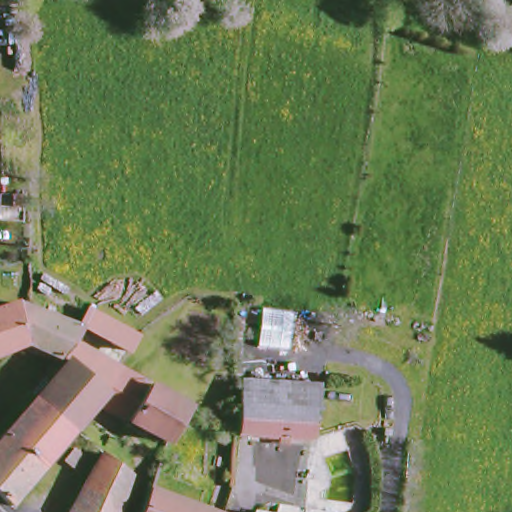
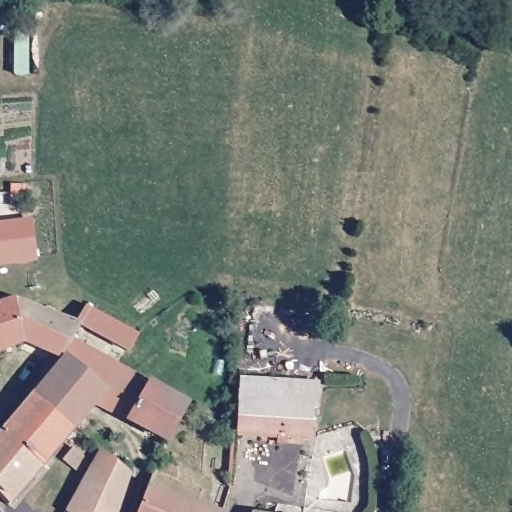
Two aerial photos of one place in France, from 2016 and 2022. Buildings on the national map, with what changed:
new [(33,219),(37,262),(0,266),(0,223),(33,219)]
unchanged [(14,301),(28,306),(75,323),(51,370),(28,340),(0,350),(0,306),(14,301)]
unchanged [(75,323),(80,313),(82,307),(130,330),(132,331),(121,366),(134,374),(184,401),(166,440),(161,438),(88,407),(72,427),(32,394),(51,370),(75,323)]
unchanged [(299,442),(231,430),(239,376),(310,389),(315,390),(311,417),(304,416),(300,436),(299,442)]
unchanged [(32,394),(72,427),(8,506),(0,498),(0,432),(32,394)]
unchanged [(100,451),(128,473),(114,512),(62,512),(100,451)]
unchanged [(148,484),(222,512),(135,512),(148,484)]

